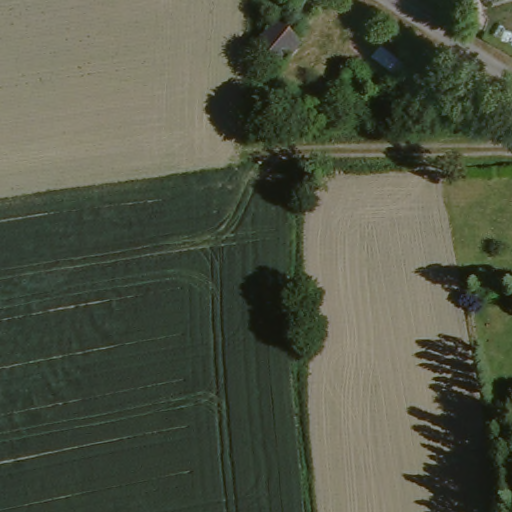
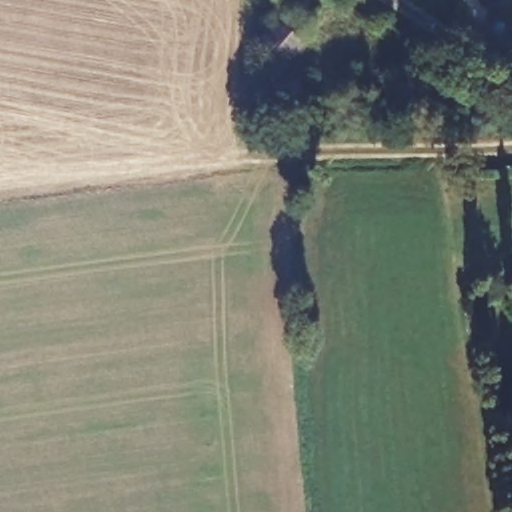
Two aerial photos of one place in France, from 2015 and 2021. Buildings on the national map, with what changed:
unchanged [(256,43),(277,20),(301,42),(281,65),(256,43)]
unchanged [(346,94),(335,85),(346,72),(357,82),(346,94)]

